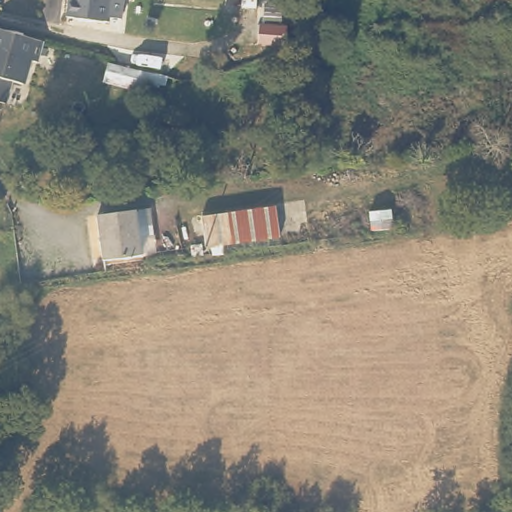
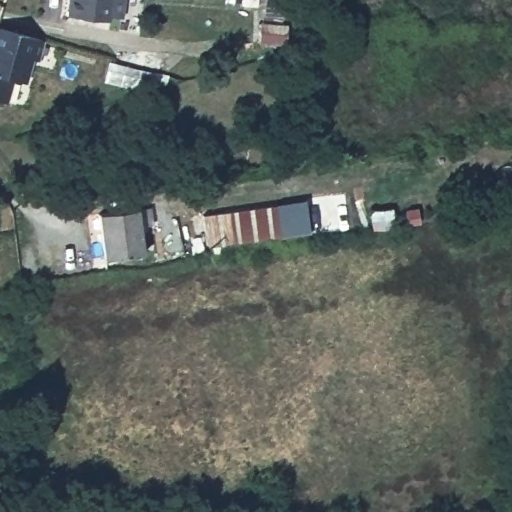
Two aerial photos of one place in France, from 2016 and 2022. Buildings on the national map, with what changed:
unchanged [(109,19),(56,12),(57,0),(111,0),(109,19)]
unchanged [(280,35),(249,51),(255,0),(284,0),(280,35)]
unchanged [(34,57),(26,55),(20,79),(7,77),(2,99),(0,98),(0,29),(38,37),(34,57)]
unchanged [(100,85),(96,62),(122,67),(124,80),(100,85)]
unchanged [(280,231),(207,242),(203,212),(276,202),(280,231)]
unchanged [(139,253),(101,258),(94,215),(132,208),(139,253)]

